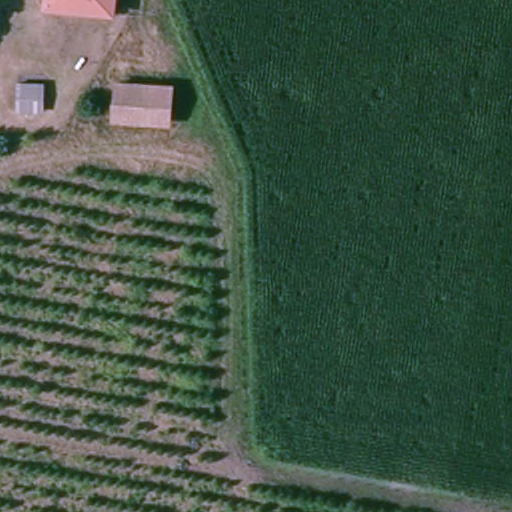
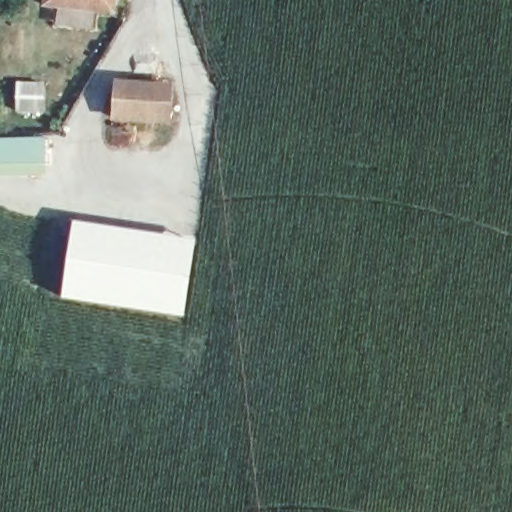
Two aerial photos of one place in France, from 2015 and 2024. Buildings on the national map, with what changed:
unchanged [(42,0),(114,0),(113,15),(41,10),(42,0)]
unchanged [(162,87),(160,123),(112,115),(118,80),(162,87)]
demolished [(0,130),(0,90),(58,99),(55,132),(0,130)]
new [(45,136),(46,176),(0,177),(0,138),(45,136)]
new [(62,300),(74,222),(196,241),(185,318),(62,300)]

